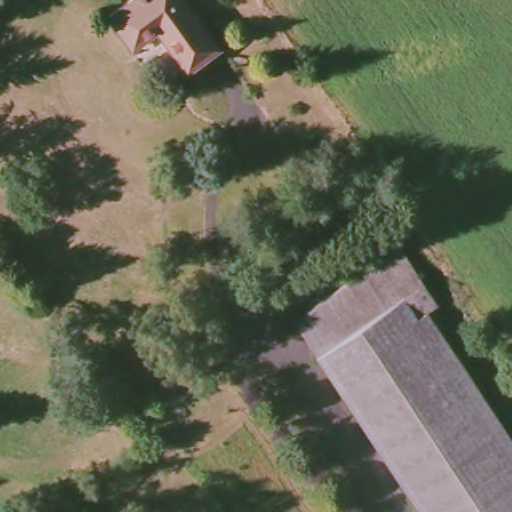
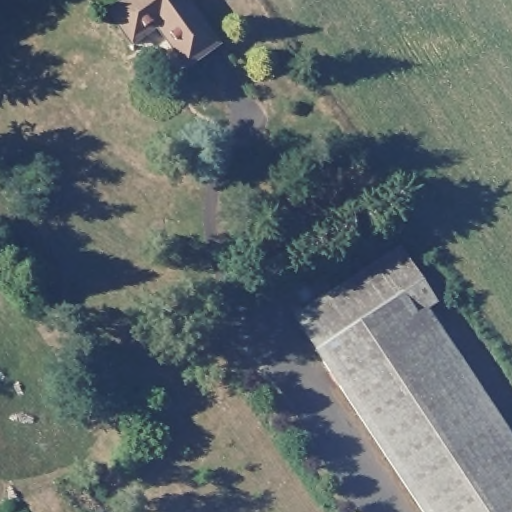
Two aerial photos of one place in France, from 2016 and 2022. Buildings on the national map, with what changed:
unchanged [(159,24),(133,40),(115,10),(131,0),(145,0),(159,24)]
unchanged [(219,41),(188,63),(160,23),(159,24),(145,0),(191,0),(219,41)]
unchanged [(296,316),(294,310),(325,289),(330,295),(402,247),(422,286),(437,306),(429,311),(512,435),(512,512),(424,512),(318,353),(296,316)]

